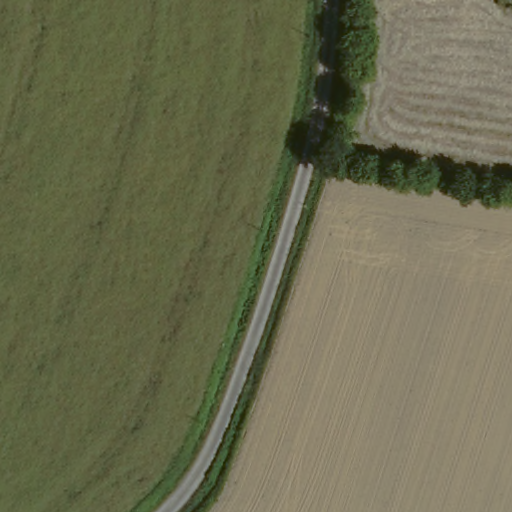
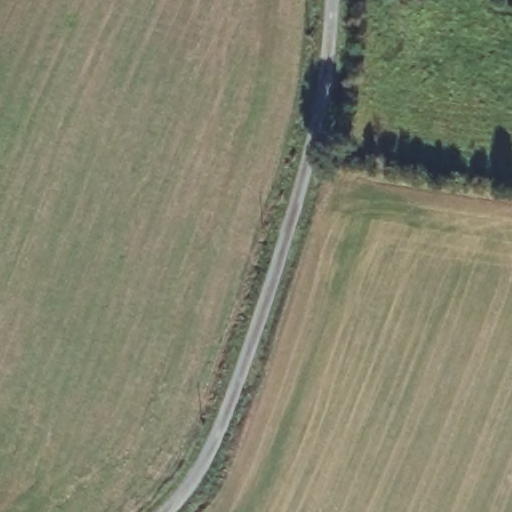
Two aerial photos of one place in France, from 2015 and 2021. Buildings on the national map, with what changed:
[]

